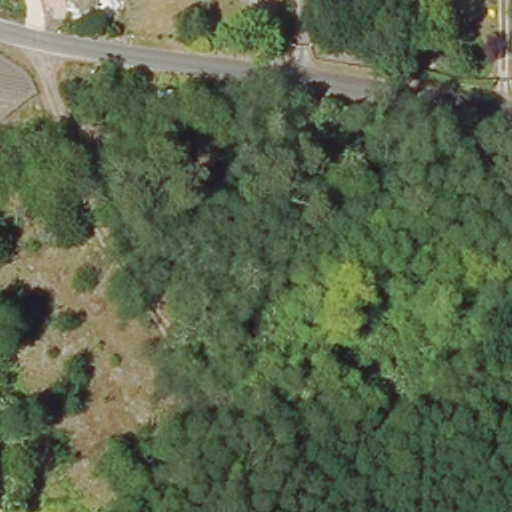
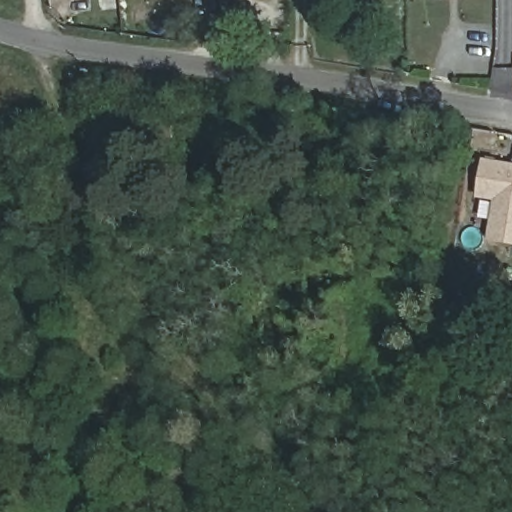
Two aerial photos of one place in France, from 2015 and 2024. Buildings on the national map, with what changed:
unchanged [(12,178),(0,177),(0,152),(14,153),(12,178)]
new [(494,201),(477,198),(484,159),(512,164),(512,246),(488,242),(494,201)]

